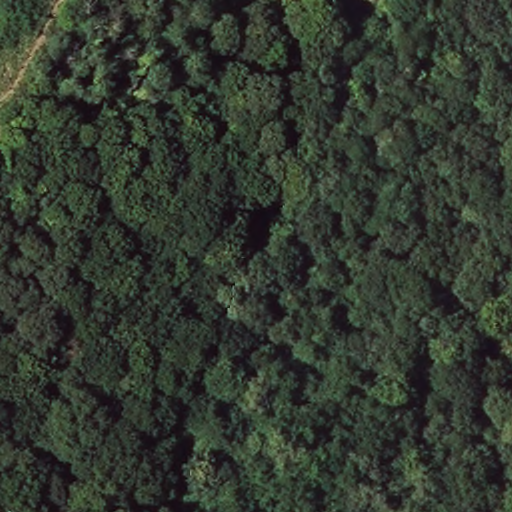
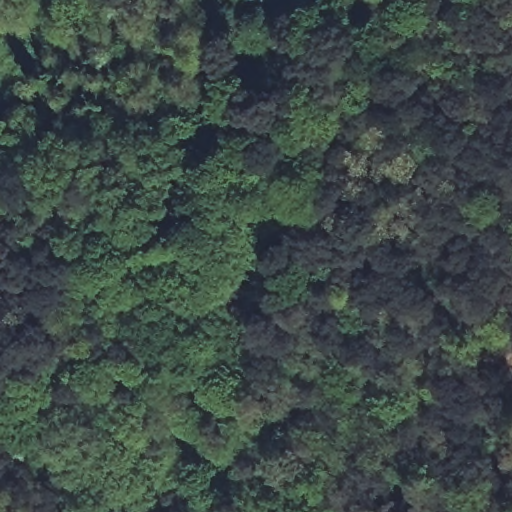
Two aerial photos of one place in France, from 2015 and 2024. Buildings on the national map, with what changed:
[]

